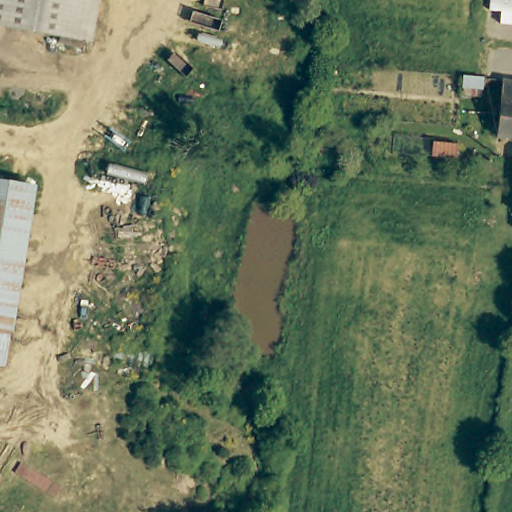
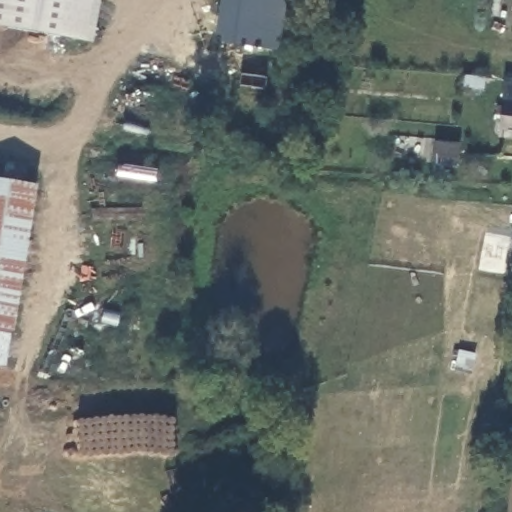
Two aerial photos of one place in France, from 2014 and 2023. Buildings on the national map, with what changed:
unchanged [(0,28),(0,0),(99,0),(91,43),(0,28)]
new [(215,43),(220,0),(287,0),(280,53),(215,43)]
unchanged [(500,115),(492,114),(493,104),(501,105),(502,100),(504,82),(512,83),(512,139),(497,138),(500,115)]
unchanged [(442,143),(458,143),(471,143),(471,160),(457,160),(442,160),(442,143)]
unchanged [(13,339),(0,337),(0,187),(35,193),(13,339)]
new [(0,365),(0,337),(13,339),(9,367),(0,365)]

